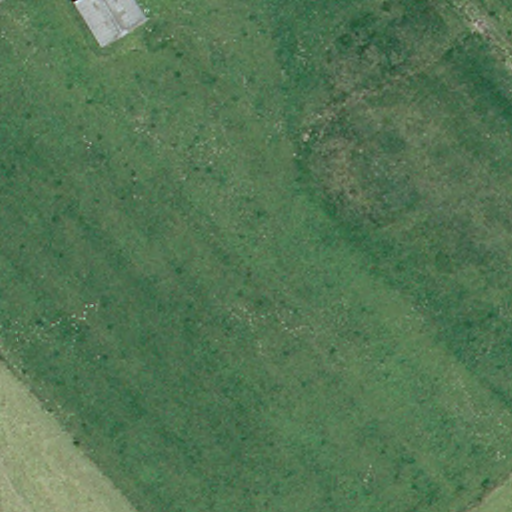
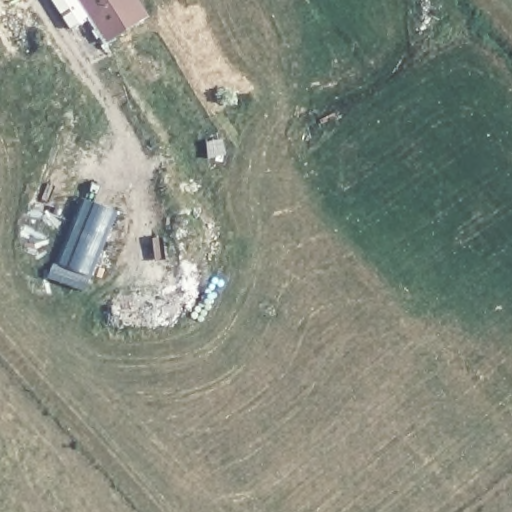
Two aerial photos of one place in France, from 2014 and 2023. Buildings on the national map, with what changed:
unchanged [(81,0),(142,0),(150,9),(111,41),(79,2),(81,0)]
new [(81,197),(112,210),(86,276),(53,263),(81,197)]

